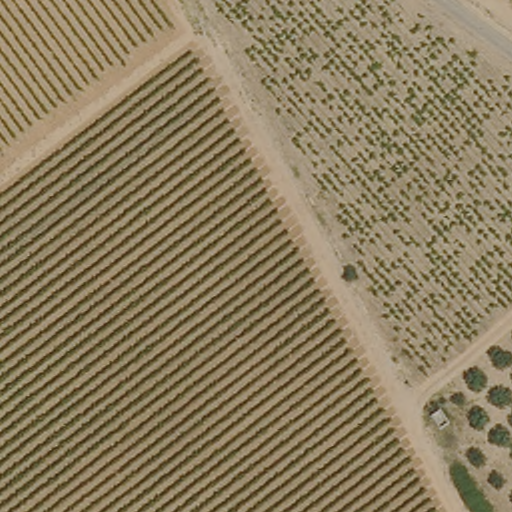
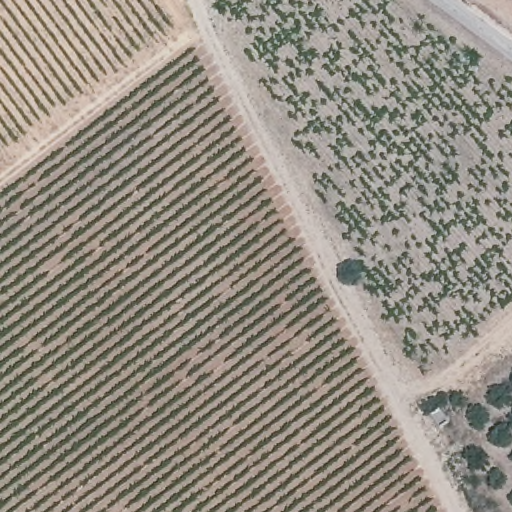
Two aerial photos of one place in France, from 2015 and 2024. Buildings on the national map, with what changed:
unchanged [(444,411),(453,428),(439,437),(429,416),(444,411)]

